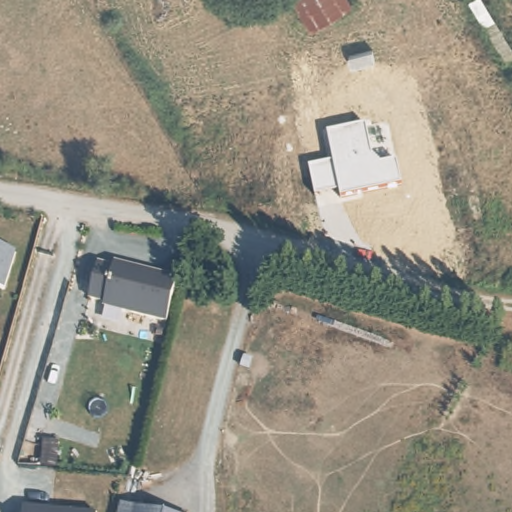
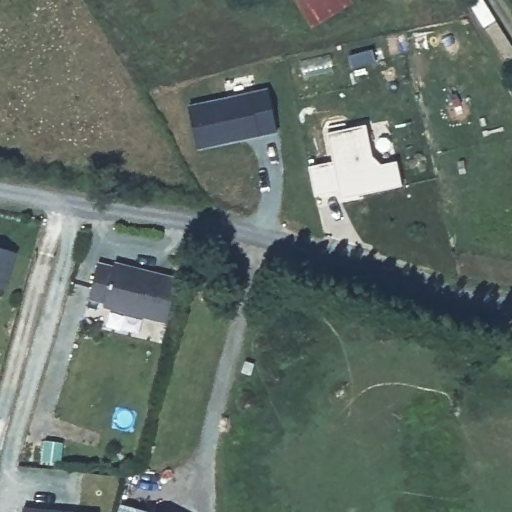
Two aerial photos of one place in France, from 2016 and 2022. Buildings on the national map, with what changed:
unchanged [(350,7),(311,30),(292,0),(347,0),(350,7)]
new [(278,133),(197,151),(186,104),(268,87),(278,133)]
unchanged [(340,199),(338,191),(314,196),(308,166),(334,161),(328,133),(366,124),(372,155),(382,163),(398,160),(401,186),(340,199)]
unchanged [(3,293),(0,292),(0,249),(16,254),(3,293)]
unchanged [(113,269),(114,263),(178,282),(167,326),(101,309),(103,302),(88,298),(96,266),(113,269)]
unchanged [(149,506),(148,512),(119,512),(121,499),(149,506)]
unchanged [(175,512),(148,512),(149,506),(175,512)]
unchanged [(23,512),(23,507),(77,512),(23,512)]

